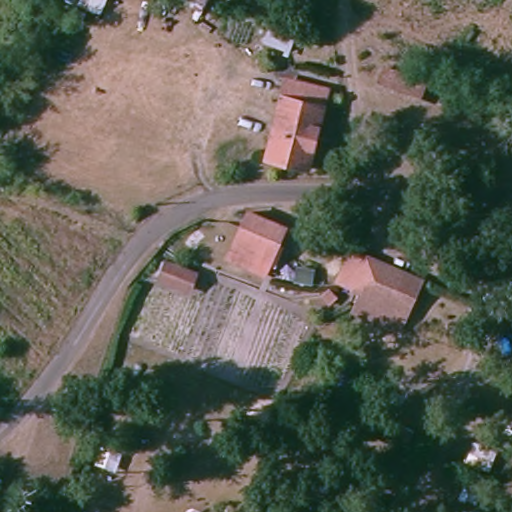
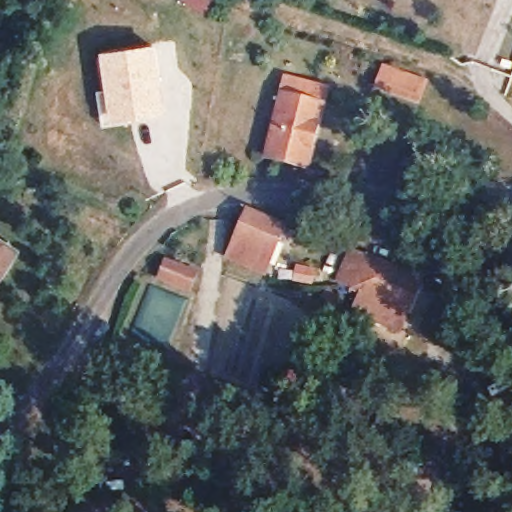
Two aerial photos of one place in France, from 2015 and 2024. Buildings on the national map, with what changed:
unchanged [(186,3),(178,0),(188,0),(186,3)]
new [(109,92),(102,53),(159,44),(169,114),(130,118),(131,124),(105,127),(100,92),(109,92)]
new [(427,80),(418,104),(375,89),(385,63),(427,80)]
demolished [(402,104),(372,93),(376,83),(392,89),(396,76),(410,82),(402,104)]
unchanged [(315,161),(271,151),(286,89),(330,98),(315,161)]
unchanged [(232,256),(246,226),(253,210),(290,226),(283,242),(271,272),(232,256)]
new [(0,285),(0,239),(21,252),(0,285)]
unchanged [(396,311),(388,329),(329,304),(350,254),(402,277),(410,280),(396,311)]
unchanged [(316,295),(279,289),(281,274),(283,267),(320,273),(318,285),(316,295)]

